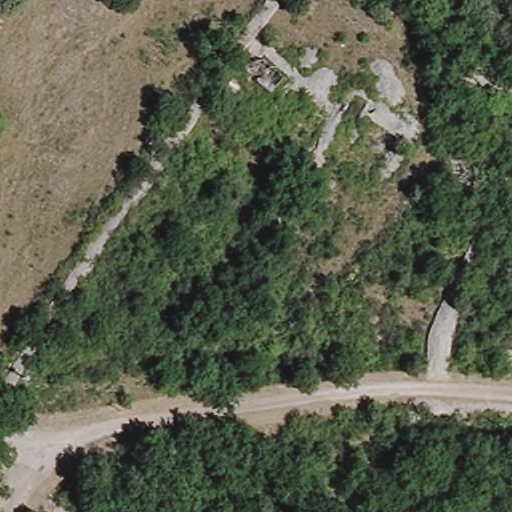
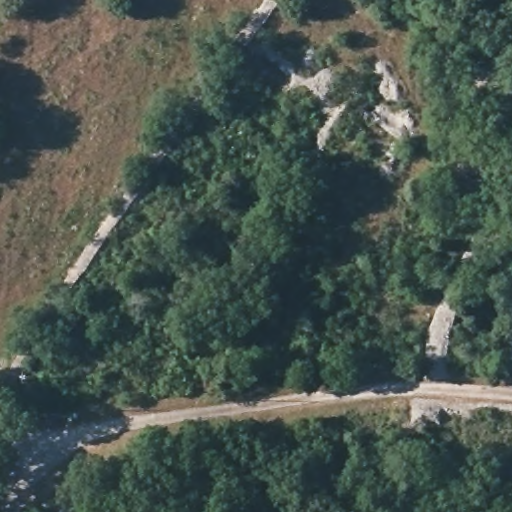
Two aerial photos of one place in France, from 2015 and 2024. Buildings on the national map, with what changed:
unchanged [(370,96),(358,116),(345,104),(355,88),(370,96)]

